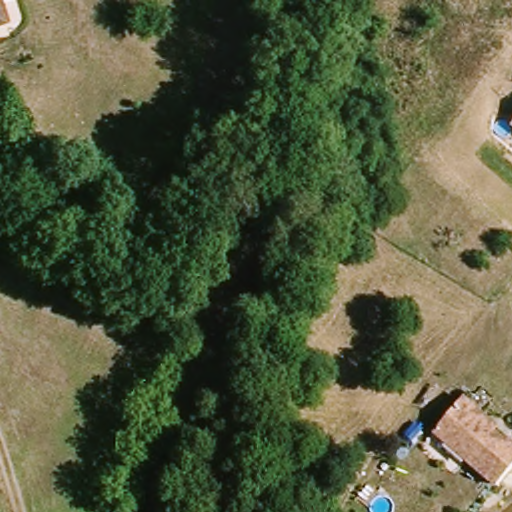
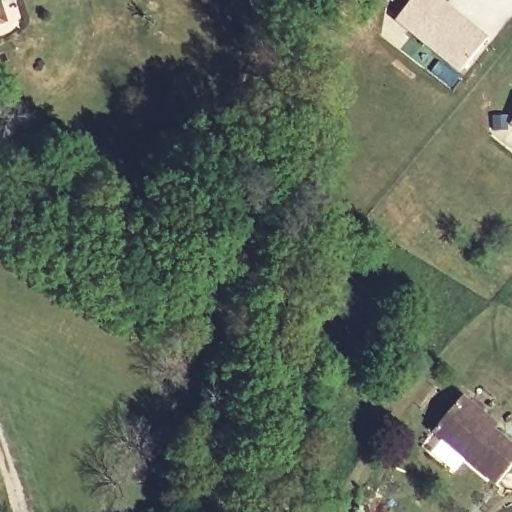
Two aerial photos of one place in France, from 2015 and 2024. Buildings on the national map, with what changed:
unchanged [(1,0),(8,26),(0,28),(0,0),(1,0)]
new [(396,21),(413,0),(443,0),(490,38),(460,75),(396,21)]
unchanged [(512,124),(512,125),(511,125),(512,124)]
unchanged [(492,430),(512,444),(512,469),(500,485),(433,435),(461,400),(490,421),(492,430)]

